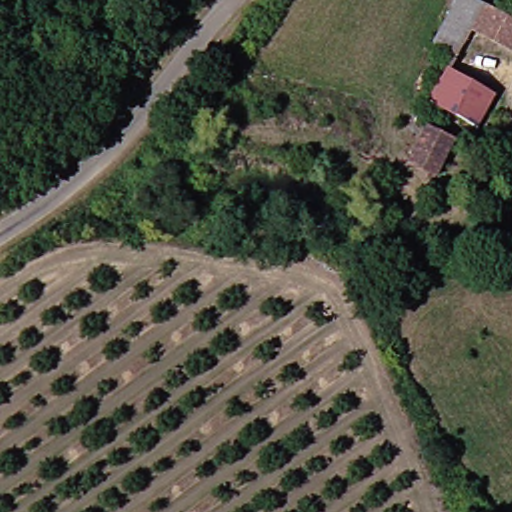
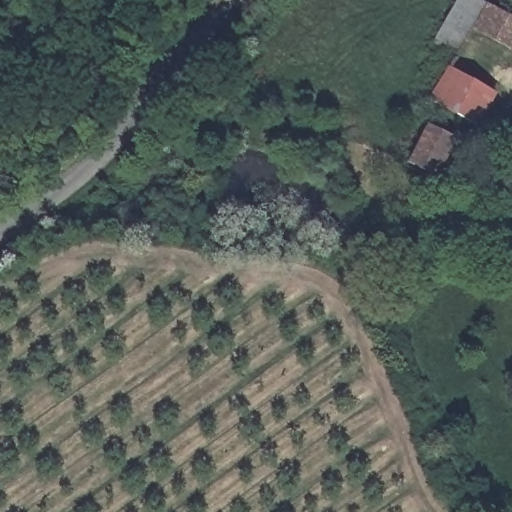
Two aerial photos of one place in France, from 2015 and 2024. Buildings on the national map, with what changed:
unchanged [(446,57),(423,44),(448,0),(466,0),(476,5),(512,25),(512,48),(508,55),(462,31),(446,57)]
unchanged [(488,97),(468,130),(420,100),(438,69),(488,97)]
unchanged [(427,177),(400,162),(418,126),(446,140),(427,177)]

